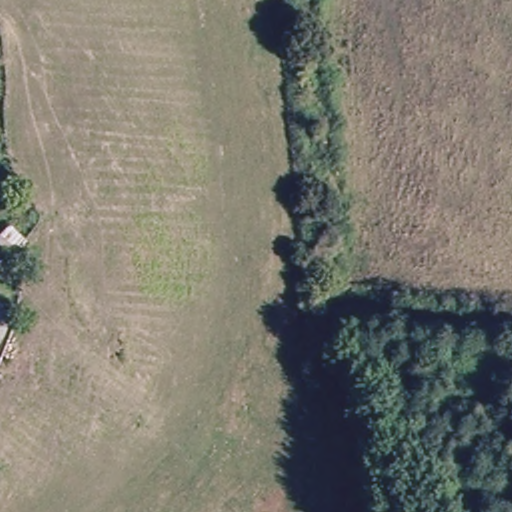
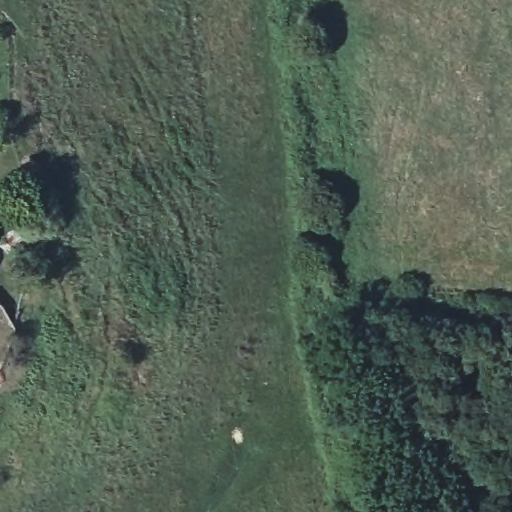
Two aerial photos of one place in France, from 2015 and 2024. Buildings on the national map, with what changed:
unchanged [(0,240),(0,238),(7,222),(27,241),(20,255),(0,240)]

